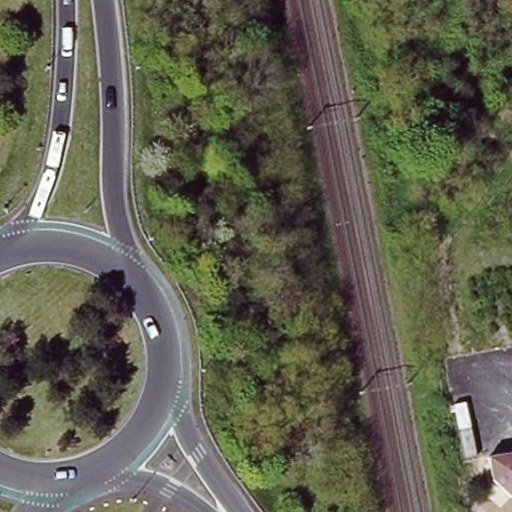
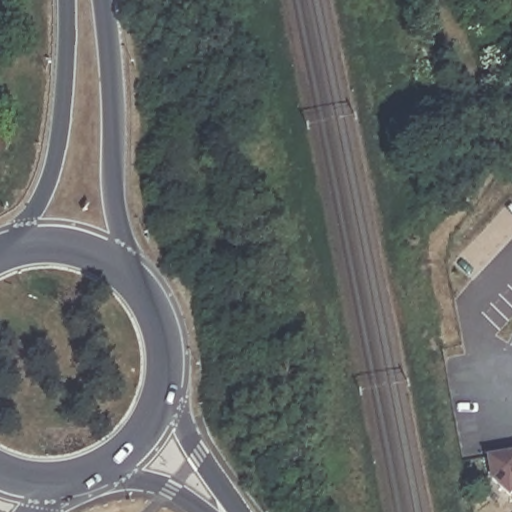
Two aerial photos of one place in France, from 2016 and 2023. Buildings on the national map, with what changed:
unchanged [(512,497),(490,477),(487,458),(512,454),(512,497)]

